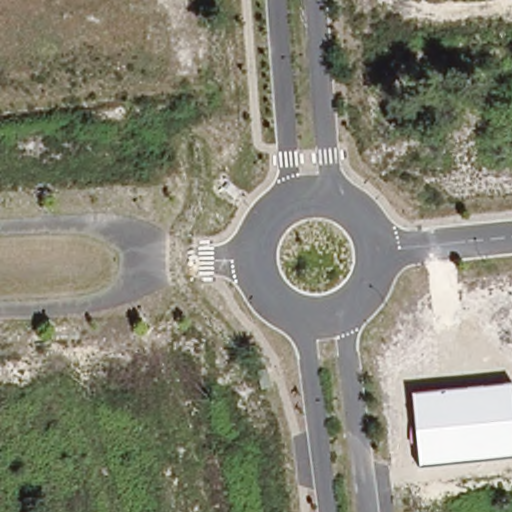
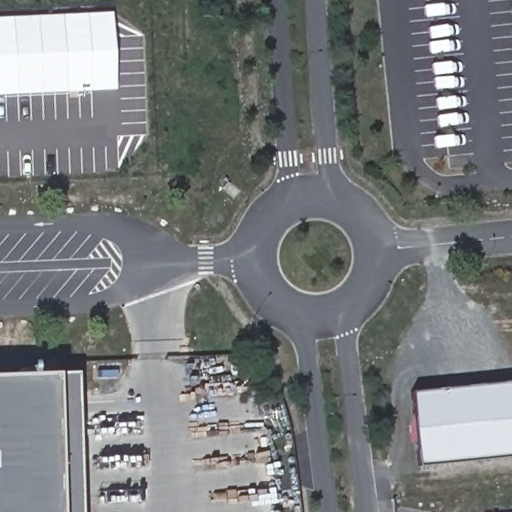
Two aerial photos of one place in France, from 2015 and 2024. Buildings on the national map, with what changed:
new [(115,90),(0,96),(0,18),(111,12),(115,90)]
new [(0,512),(0,378),(80,375),(84,512),(0,512)]
unchanged [(512,456),(418,466),(411,392),(511,382),(512,391),(512,456)]

